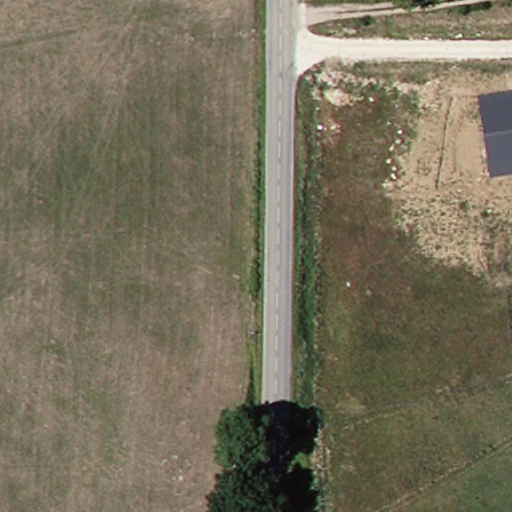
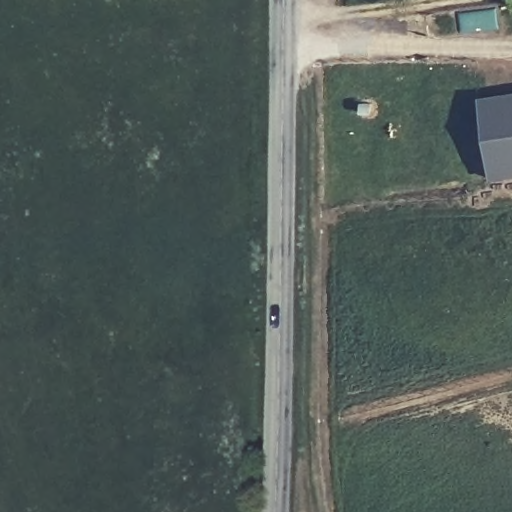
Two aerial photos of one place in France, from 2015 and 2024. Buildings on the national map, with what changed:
new [(478,98),(512,93),(512,176),(489,179),(478,98)]

